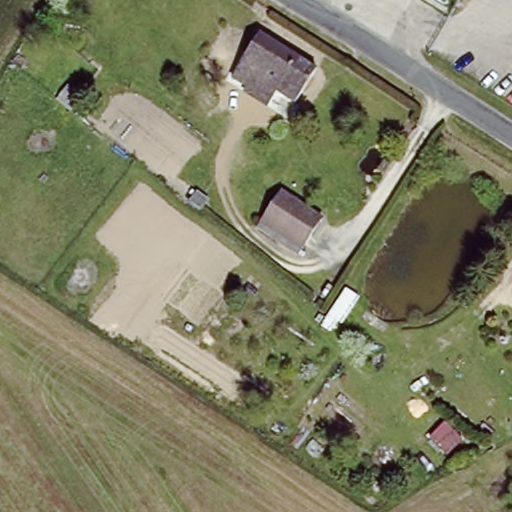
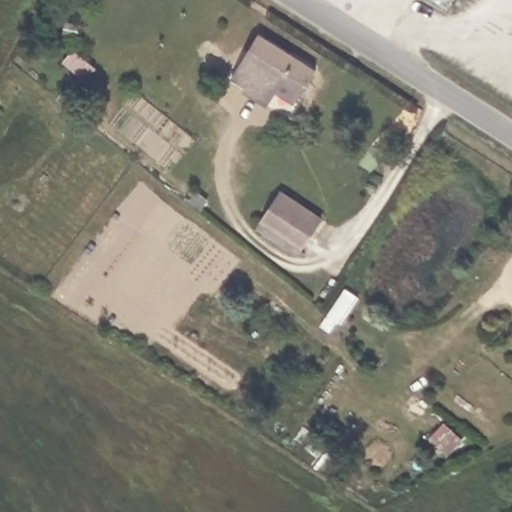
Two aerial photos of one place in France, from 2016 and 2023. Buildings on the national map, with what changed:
unchanged [(259,30),(317,69),(304,90),(296,102),(277,89),(271,99),(269,102),(246,86),(248,83),(233,73),(259,30)]
unchanged [(277,194),(316,218),(299,246),(259,223),(277,194)]

